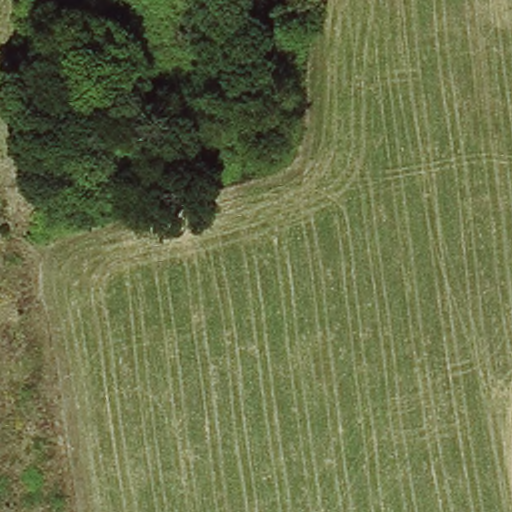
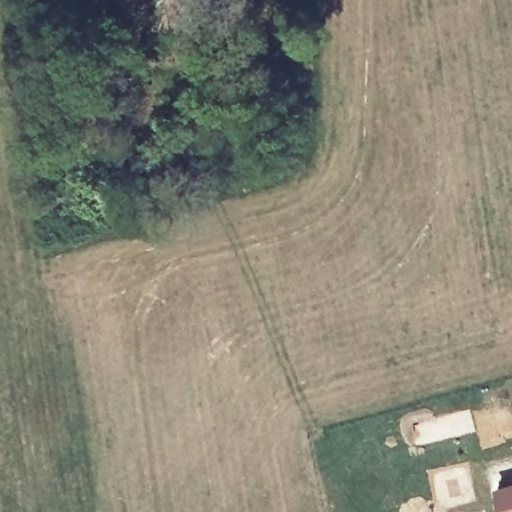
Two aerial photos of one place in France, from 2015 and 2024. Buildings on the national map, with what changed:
new [(497,487),(512,483),(512,512),(503,512),(497,487)]

